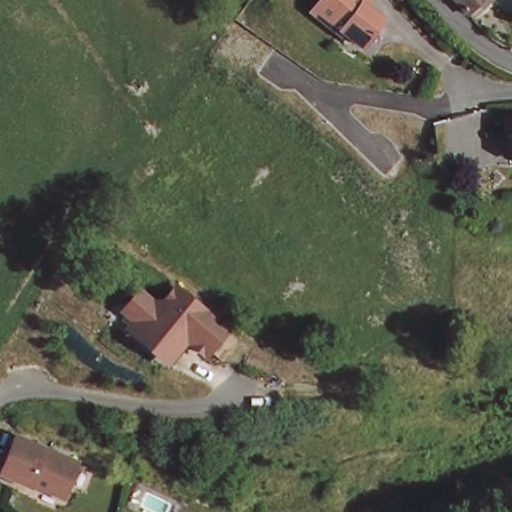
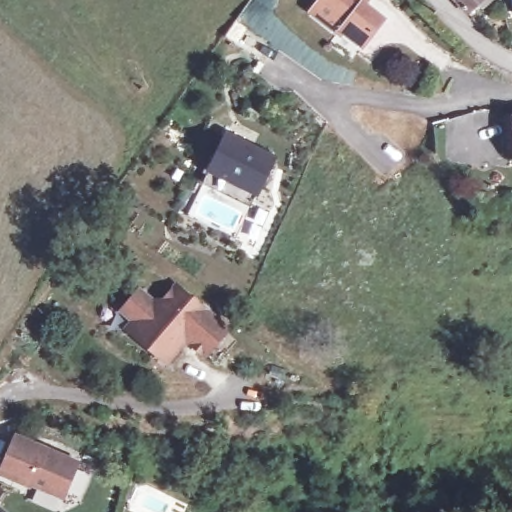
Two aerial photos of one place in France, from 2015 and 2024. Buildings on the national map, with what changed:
unchanged [(359,0),(357,3),(377,19),(357,44),(337,29),(335,32),(307,11),(315,0),(359,0)]
unchanged [(467,14),(454,0),(490,0),(491,1),(485,7),(478,14),(473,8),(467,14)]
new [(235,18),(268,41),(257,58),(223,35),(235,18)]
new [(226,134),(273,156),(252,200),(205,177),(226,134)]
unchanged [(209,354),(195,342),(198,338),(194,334),(172,360),(142,333),(140,321),(127,310),(144,290),(157,302),(169,301),(181,286),(217,316),(230,328),(209,354)]
unchanged [(75,461),(61,494),(32,480),(30,483),(2,470),(17,435),(75,461)]

